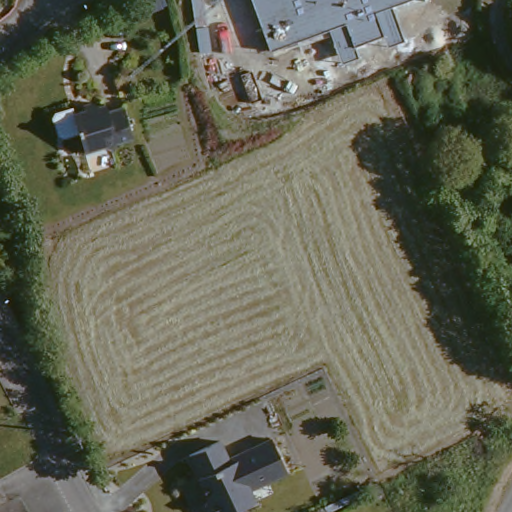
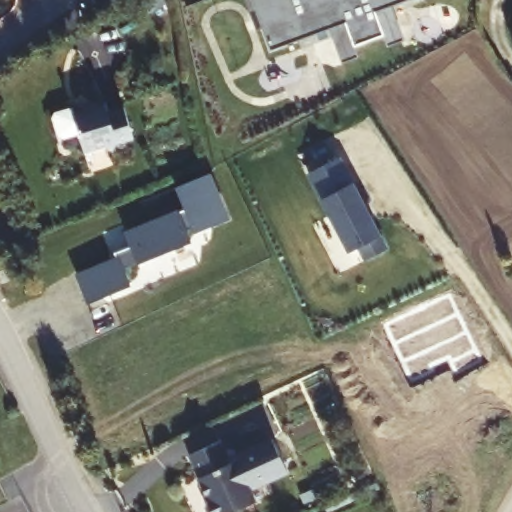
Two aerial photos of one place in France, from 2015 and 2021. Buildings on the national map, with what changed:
unchanged [(147,19),(140,0),(160,0),(165,12),(147,19)]
unchanged [(403,40),(387,46),(384,36),(355,47),(359,57),(342,63),(328,30),(271,50),(252,0),(407,0),(392,6),(403,40)]
unchanged [(85,100),(95,105),(101,102),(104,111),(117,106),(127,137),(107,144),(104,152),(97,148),(80,153),(74,132),(67,111),(81,107),(85,100)]
new [(337,157),(383,250),(362,261),(355,247),(346,252),(307,172),(337,157)]
new [(116,258),(113,252),(131,245),(126,232),(186,209),(177,187),(210,175),(227,220),(195,232),(193,228),(186,231),(190,242),(122,269),(129,285),(87,302),(76,274),(116,258)]
unchanged [(222,438),(231,457),(271,440),(287,472),(252,490),(257,502),(232,512),(209,512),(188,453),(222,438)]

